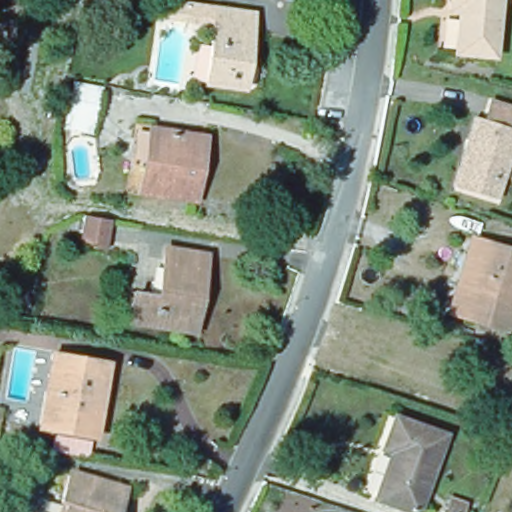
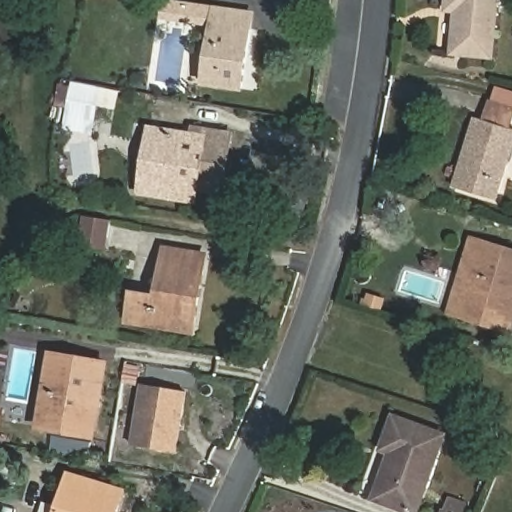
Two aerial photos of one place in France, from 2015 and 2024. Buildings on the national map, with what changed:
unchanged [(456,56),(458,11),(448,11),(448,0),(502,0),(496,59),(456,56)]
unchanged [(245,98),(203,90),(213,25),(164,16),(166,1),(216,10),(258,18),(245,98)]
unchanged [(99,105),(94,134),(68,129),(72,100),(99,105)]
unchanged [(457,187),(478,118),(512,129),(512,157),(498,200),(457,187)]
unchanged [(196,202),(143,192),(154,131),(207,140),(196,202)]
unchanged [(119,253),(88,248),(91,219),(121,223),(119,253)]
unchanged [(453,313),(474,237),(488,242),(468,318),(453,313)]
unchanged [(512,249),(512,332),(468,318),(488,242),(512,249)]
unchanged [(175,332),(127,324),(132,294),(157,298),(164,250),(208,258),(198,319),(195,335),(175,332)]
unchanged [(112,368),(99,439),(41,429),(55,359),(112,368)]
new [(176,452),(131,444),(143,383),(187,391),(176,452)]
unchanged [(418,512),(410,512),(377,502),(392,457),(384,453),(394,419),(446,438),(418,512)]
unchanged [(72,477),(127,494),(121,512),(60,512),(72,477)]
unchanged [(445,509),(453,512),(444,512),(445,509)]

